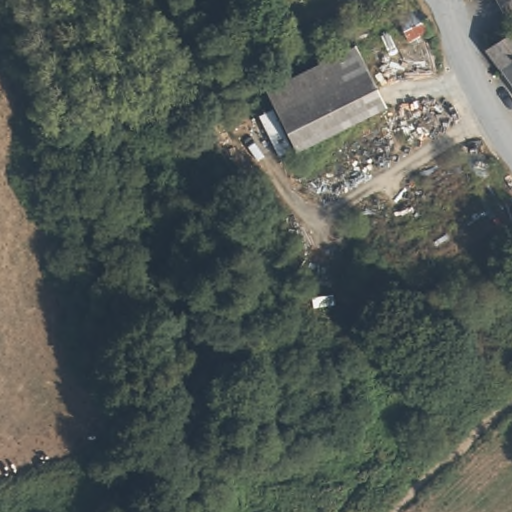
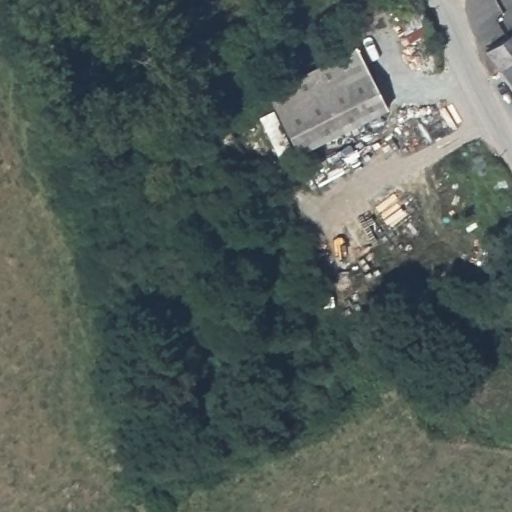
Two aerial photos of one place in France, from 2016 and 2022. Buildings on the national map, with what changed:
unchanged [(431,27),(414,39),(399,18),(416,6),(431,27)]
unchanged [(512,33),(512,61),(501,67),(488,50),(512,33)]
unchanged [(259,93),(348,45),(381,103),(293,154),(259,93)]
unchanged [(512,61),(512,82),(501,67),(512,61)]

